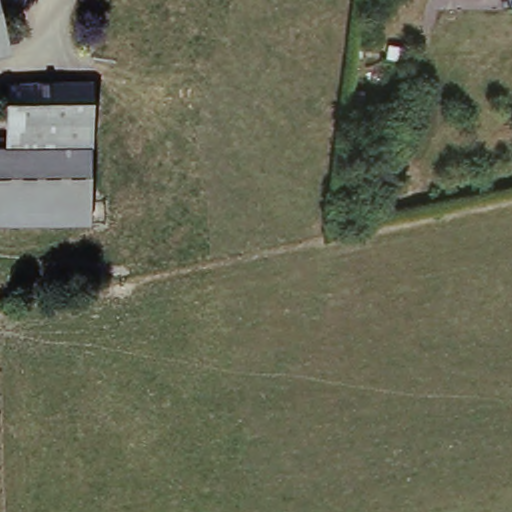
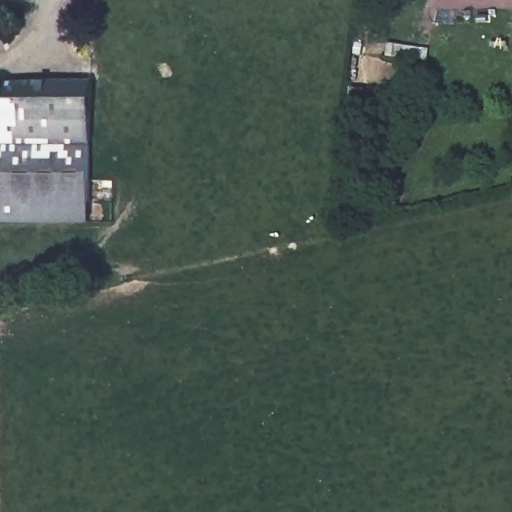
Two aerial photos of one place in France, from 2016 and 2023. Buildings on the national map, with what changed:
unchanged [(0,59),(0,0),(1,0),(13,56),(0,59)]
unchanged [(91,112),(6,115),(8,82),(91,80),(91,112)]
unchanged [(90,221),(0,222),(0,142),(6,142),(6,115),(91,112),(90,221)]

